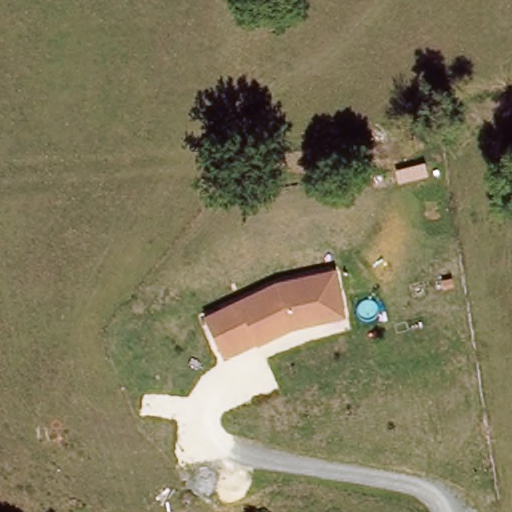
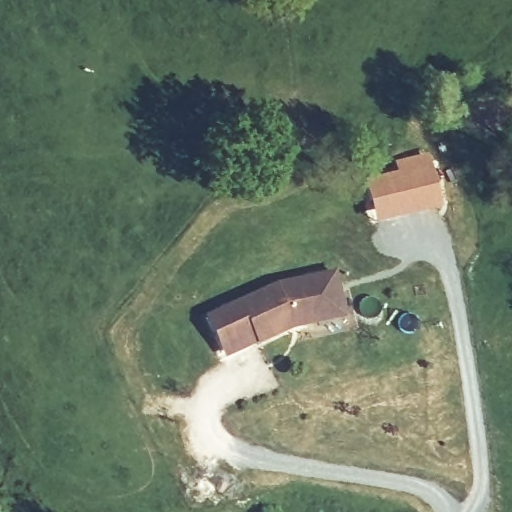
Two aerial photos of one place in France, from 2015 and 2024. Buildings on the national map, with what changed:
new [(395,171),(392,161),(430,152),(435,171),(431,172),(438,210),(373,225),(360,179),(395,171)]
unchanged [(345,318),(297,328),(220,358),(198,316),(276,282),(335,272),(345,318)]

